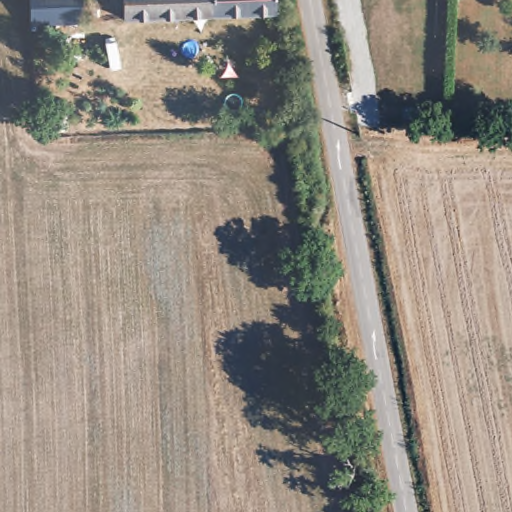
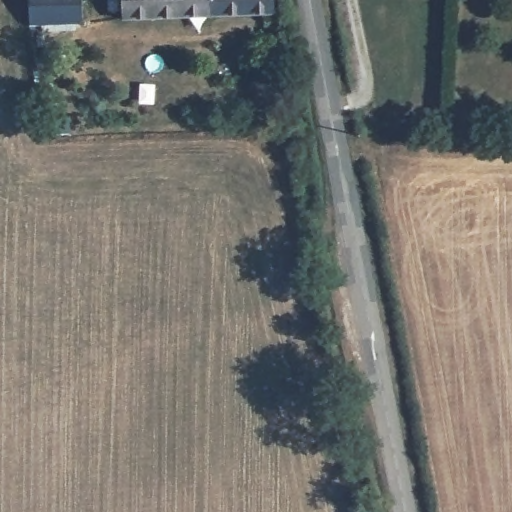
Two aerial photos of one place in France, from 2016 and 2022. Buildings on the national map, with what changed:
unchanged [(82,20),(39,22),(29,23),(27,0),(81,0),(82,20)]
unchanged [(273,10),(122,23),(121,0),(273,0),(273,10)]

